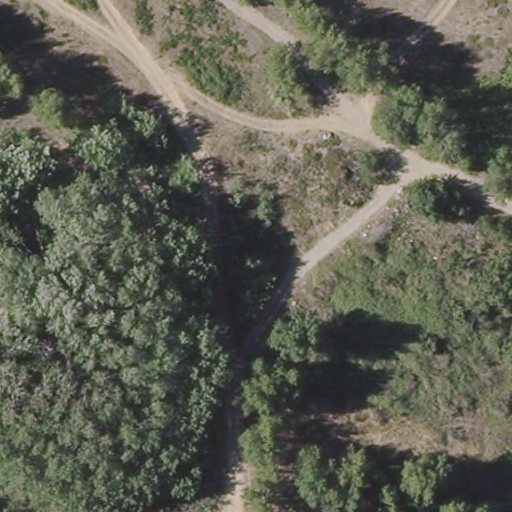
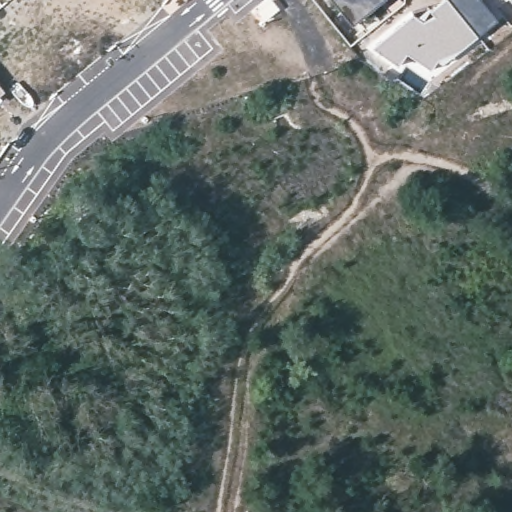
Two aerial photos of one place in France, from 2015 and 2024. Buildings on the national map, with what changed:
new [(353,26),(332,0),(384,0),(353,26)]
new [(416,12),(418,14),(440,0),(449,0),(478,37),(442,66),(440,63),(431,71),(407,55),(398,67),(372,47),(416,12)]
new [(500,19),(478,37),(449,0),(483,0),(500,19)]
new [(5,91),(0,95),(0,85),(5,91)]

